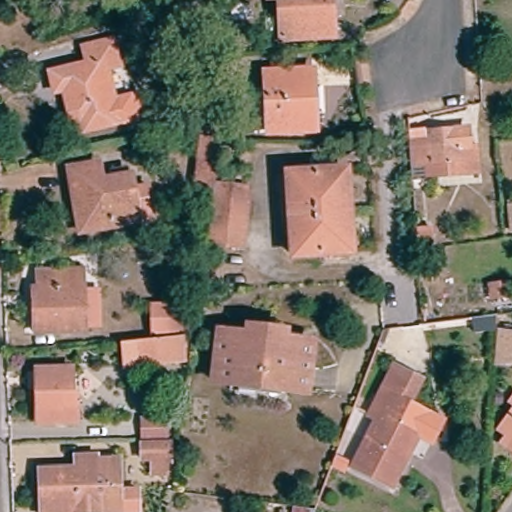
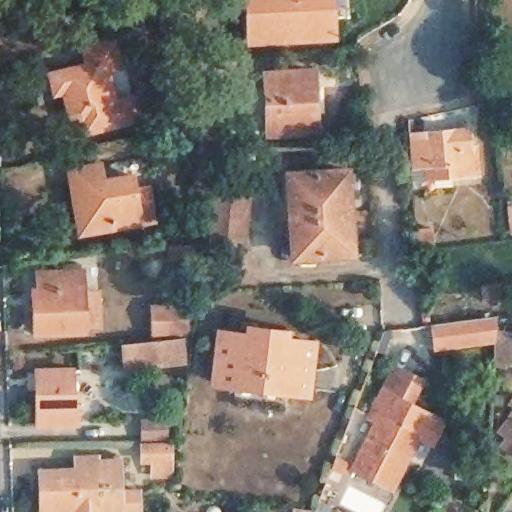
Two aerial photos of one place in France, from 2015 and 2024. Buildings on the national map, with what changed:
new [(247,42),(246,0),(279,0),(282,41),(247,42)]
unchanged [(282,41),(279,0),(329,0),(331,39),(282,41)]
unchanged [(123,68),(109,70),(122,130),(87,135),(85,125),(77,120),(71,115),(67,93),(57,94),(54,74),(89,68),(86,48),(118,42),(123,68)]
unchanged [(310,73),(313,131),(266,134),(263,76),(310,73)]
unchanged [(412,143),(435,141),(435,131),(471,129),(473,147),(480,147),(482,178),(433,181),(431,162),(414,163),(412,143)]
unchanged [(189,198),(195,157),(196,146),(216,149),(214,159),(209,200),(189,198)]
unchanged [(345,174),(350,257),(293,259),(286,178),(345,174)]
unchanged [(74,223),(68,183),(94,179),(97,191),(127,188),(129,202),(143,200),(148,232),(85,241),(77,242),(74,223)]
unchanged [(253,198),(244,255),(210,250),(220,193),(253,198)]
unchanged [(512,231),(509,232),(508,209),(512,209),(512,231)]
unchanged [(80,275),(81,333),(32,334),(31,313),(31,291),(38,291),(38,275),(80,275)]
unchanged [(507,300),(488,303),(486,287),(505,284),(507,300)]
new [(498,327),(512,330),(512,365),(507,365),(507,369),(496,368),(497,341),(434,351),(432,324),(497,314),(498,327)]
unchanged [(304,393),(211,382),(216,332),(243,335),(245,329),(283,334),(282,340),(310,344),(304,393)]
demolished [(512,366),(493,365),(494,334),(512,335),(512,366)]
unchanged [(179,340),(182,365),(121,371),(119,345),(179,340)]
unchanged [(351,468),(376,417),(369,414),(391,369),(419,384),(406,409),(411,401),(447,419),(433,448),(415,439),(416,437),(391,488),(351,468)]
unchanged [(68,397),(74,397),(75,416),(56,417),(56,424),(36,424),(34,373),(68,373),(68,397)]
unchanged [(509,438),(502,432),(512,417),(512,450),(505,445),(509,438)]
unchanged [(162,423),(163,441),(138,442),(137,424),(162,423)]
unchanged [(165,449),(165,481),(148,481),(148,467),(138,467),(137,451),(165,449)]
unchanged [(41,506),(40,473),(73,474),(73,460),(93,459),(93,464),(114,464),(115,512),(41,512),(41,506)]

